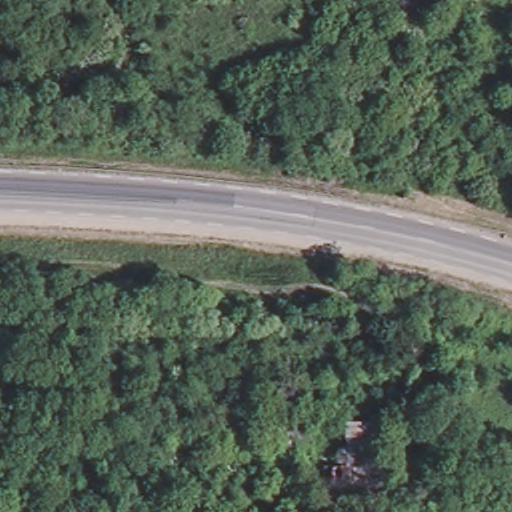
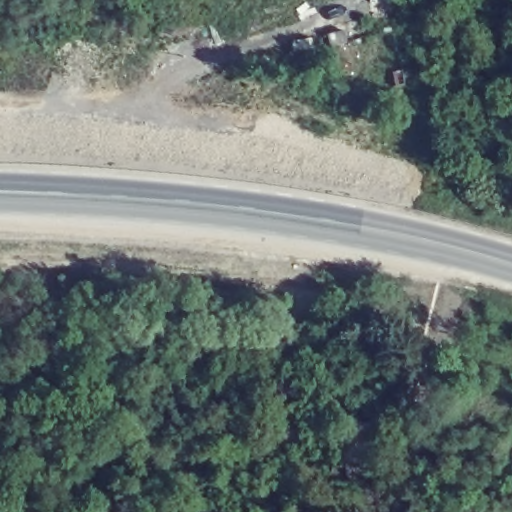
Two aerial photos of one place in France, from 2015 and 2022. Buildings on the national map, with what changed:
unchanged [(366,491),(323,489),(321,461),(331,460),(328,417),(368,417),(366,491)]
unchanged [(311,472),(288,475),(283,431),(306,427),(311,472)]

